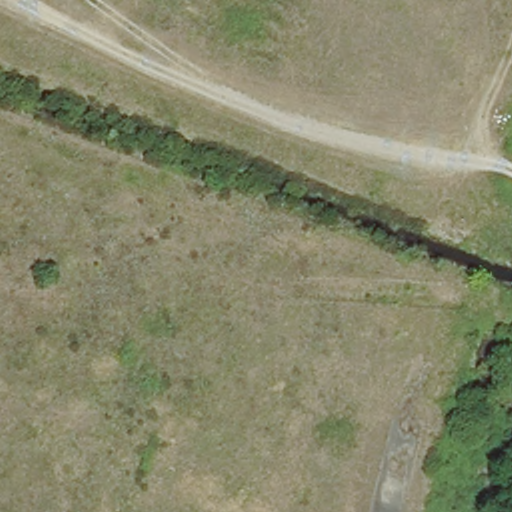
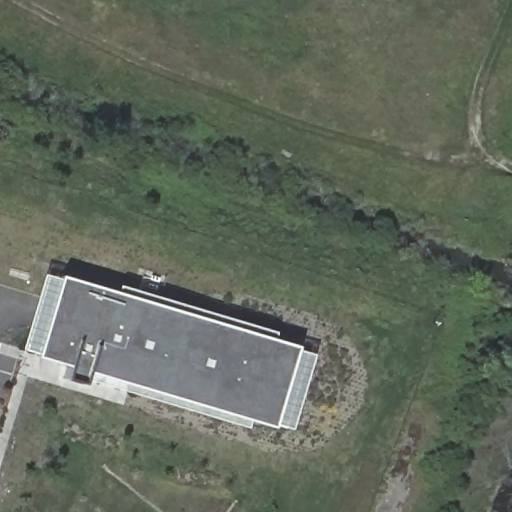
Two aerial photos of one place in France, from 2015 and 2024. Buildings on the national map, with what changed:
new [(245,427),(84,379),(82,384),(62,378),(66,366),(34,357),(35,353),(19,348),(41,273),(57,277),(58,274),(115,291),(117,284),(274,331),(272,338),(296,345),(295,349),(311,354),(289,429),(272,424),(271,427),(247,420),(245,427)]

